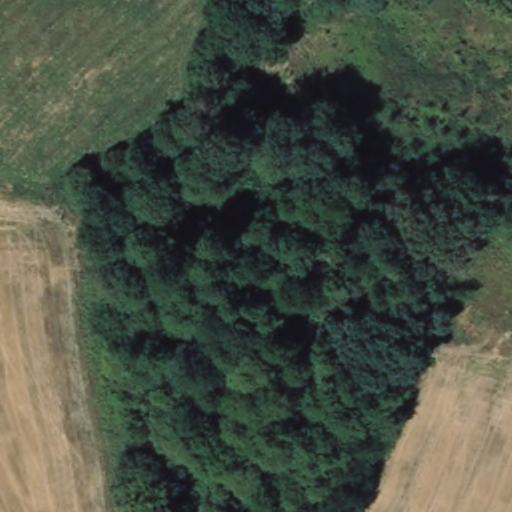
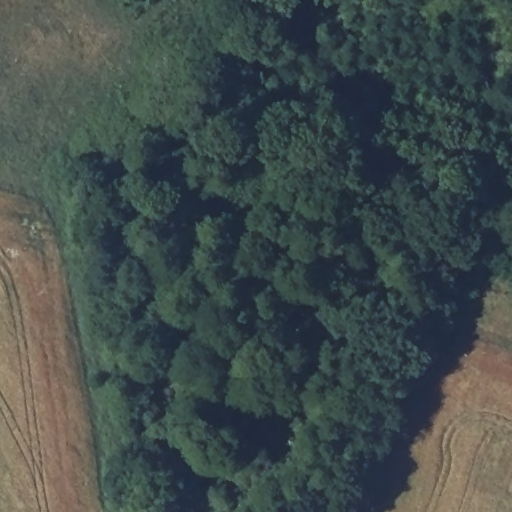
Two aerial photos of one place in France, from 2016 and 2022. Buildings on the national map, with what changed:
[]

